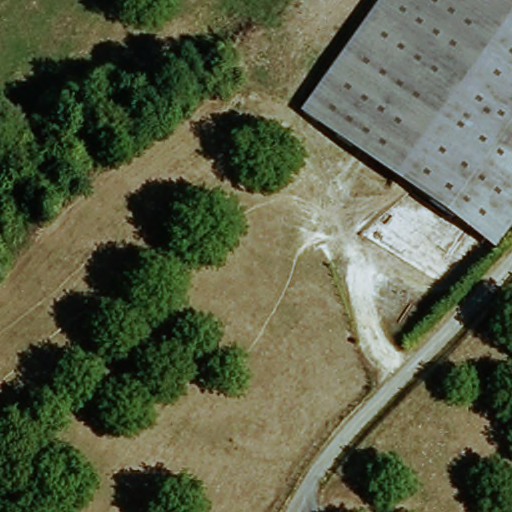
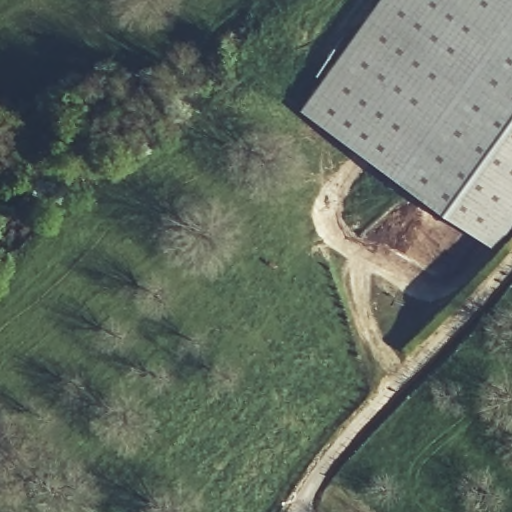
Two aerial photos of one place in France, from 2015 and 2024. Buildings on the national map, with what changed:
unchanged [(512,0),(512,205),(485,241),(308,105),(388,0),(512,0)]

